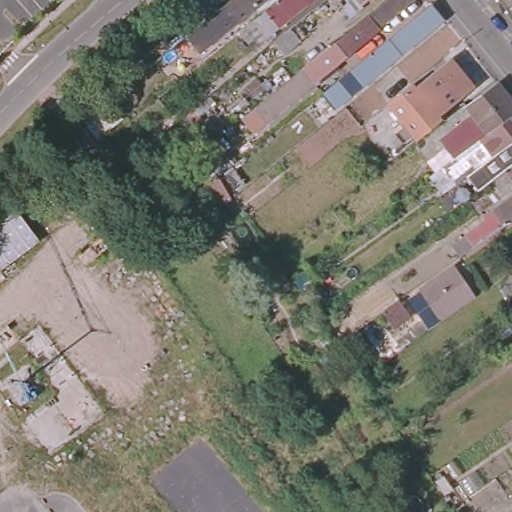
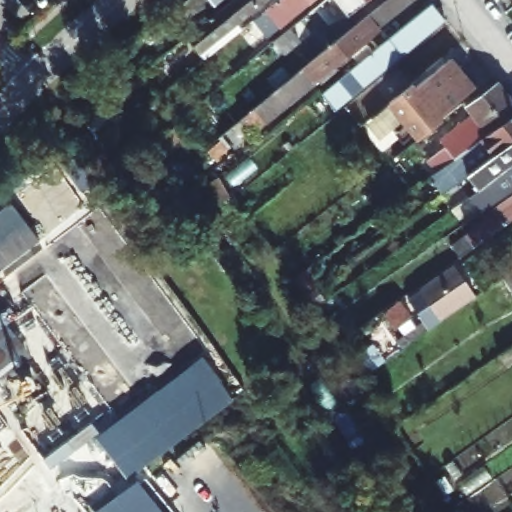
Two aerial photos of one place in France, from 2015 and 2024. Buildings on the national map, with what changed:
unchanged [(201,43),(197,46),(196,45),(170,65),(162,55),(220,7),(229,0),(264,0),(241,19),(245,22),(197,61),(193,57),(205,47),(201,43)]
unchanged [(215,0),(229,0),(220,7),(215,0)]
unchanged [(306,0),(279,22),(273,15),(257,27),(250,19),(272,0),(306,0)]
unchanged [(346,60),(329,74),(326,70),(264,118),(254,105),(382,0),(411,0),(342,55),(346,60)]
unchanged [(283,49),(274,38),(320,0),(343,0),(344,0),(283,49)]
unchanged [(362,82),(349,66),(430,0),(443,0),(451,10),(362,82)]
unchanged [(363,0),(365,0),(364,1),(363,0)]
unchanged [(177,24),(170,15),(179,7),(186,17),(177,24)]
unchanged [(385,94),(409,75),(411,77),(446,50),(470,79),(435,106),(439,110),(428,119),(415,130),(385,94)]
unchanged [(417,155),(425,149),(439,139),(437,135),(445,129),(452,121),(457,116),(470,106),(463,97),(495,73),(512,95),(512,104),(445,154),(434,161),(427,167),(417,155)]
unchanged [(456,170),(445,154),(512,104),(512,128),(458,168),(456,170)]
unchanged [(72,138),(69,134),(81,124),(91,138),(85,142),(87,146),(81,151),(72,138)]
unchanged [(500,160),(496,154),(487,160),(485,158),(471,169),(472,172),(466,177),(458,168),(512,128),(512,151),(500,160)]
unchanged [(492,174),(489,169),(500,160),(512,151),(512,175),(475,202),(467,192),(492,174)]
unchanged [(456,247),(449,238),(482,214),(480,205),(487,200),(487,198),(512,181),(512,207),(456,247)]
unchanged [(42,240),(0,269),(0,213),(15,203),(42,240)]
unchanged [(399,342),(425,323),(411,302),(422,294),(421,292),(455,268),(475,297),(402,348),(399,342)]
unchanged [(399,301),(410,317),(394,329),(382,313),(399,301)]
unchanged [(507,365),(500,355),(512,347),(512,362),(507,365)]
new [(96,436),(203,355),(234,400),(127,477),(96,436)]
new [(137,481),(163,512),(97,512),(137,481)]

